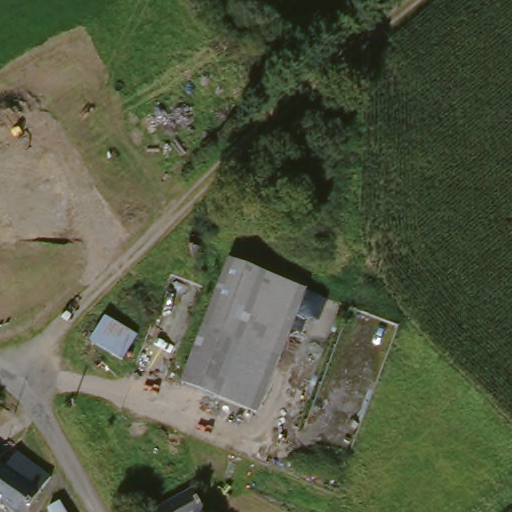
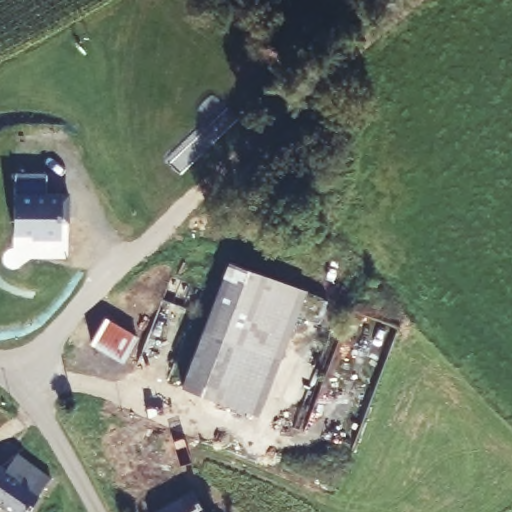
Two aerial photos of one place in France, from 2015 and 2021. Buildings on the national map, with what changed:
new [(14,192),(15,173),(46,173),(46,193),(61,194),(60,238),(31,237),(32,233),(13,233),(14,192)]
unchanged [(236,250),(310,277),(255,427),(182,399),(236,250)]
unchanged [(105,314),(138,333),(117,367),(85,348),(105,314)]
unchanged [(10,471),(20,454),(56,477),(43,496),(41,501),(34,512),(17,512),(0,501),(0,464),(10,471)]
unchanged [(213,512),(161,512),(195,492),(213,512)]

